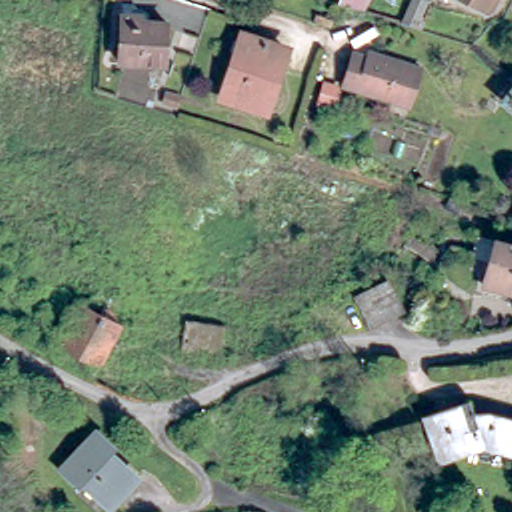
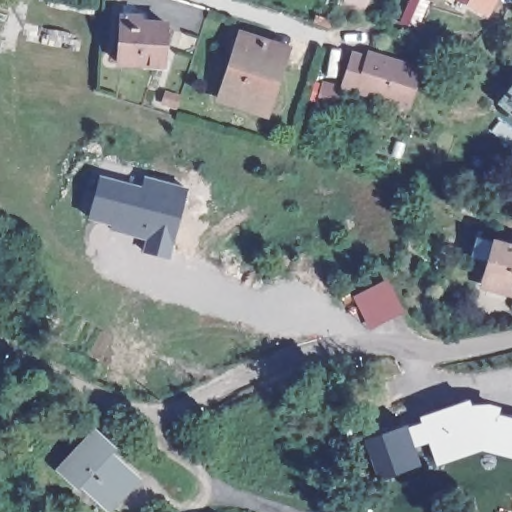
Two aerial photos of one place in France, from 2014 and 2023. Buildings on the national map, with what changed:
unchanged [(341,0),(374,0),(368,10),(340,2),(341,0)]
unchanged [(466,0),(490,0),(485,10),(466,0)]
unchanged [(410,1),(419,6),(417,10),(419,10),(413,20),(422,25),(415,36),(395,30),(407,6),(410,1)]
unchanged [(138,16),(137,22),(163,24),(161,64),(118,62),(120,16),(138,16)]
unchanged [(286,48),(271,96),(266,95),(262,107),(225,96),(245,34),(286,48)]
unchanged [(366,51),(368,44),(421,61),(407,104),(340,82),(350,46),(366,51)]
unchanged [(503,98),(512,88),(512,106),(503,98)]
unchanged [(161,93),(180,99),(180,100),(176,110),(157,105),(161,93)]
unchanged [(330,100),(326,109),(315,105),(318,96),(330,100)]
new [(88,217),(100,176),(141,187),(145,177),(162,182),(186,190),(168,258),(143,251),(147,238),(110,229),(112,224),(88,217)]
unchanged [(501,280),(481,272),(490,251),(472,244),(480,224),(512,237),(512,285),(501,280)]
unchanged [(390,280),(403,307),(373,322),(360,295),(390,280)]
unchanged [(108,385),(91,376),(97,365),(58,345),(78,306),(97,315),(106,298),(125,308),(117,325),(98,362),(115,370),(108,385)]
unchanged [(187,315),(247,323),(250,355),(182,345),(187,315)]
unchanged [(465,403),(470,420),(485,417),(502,423),(503,420),(512,422),(512,453),(498,449),(497,452),(478,446),(432,462),(418,420),(465,403)]
unchanged [(93,431),(110,446),(106,450),(133,475),(108,504),(80,479),(76,483),(60,468),(93,431)]

